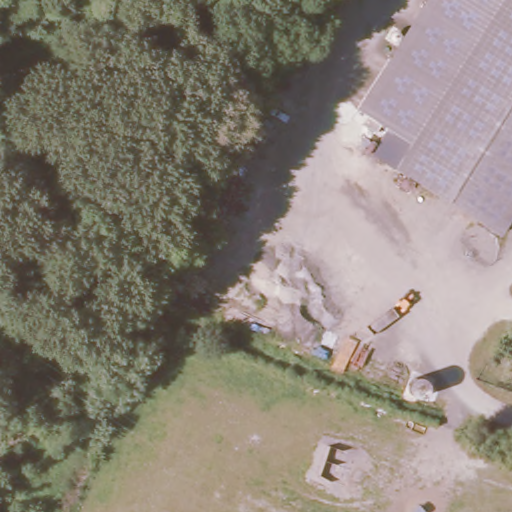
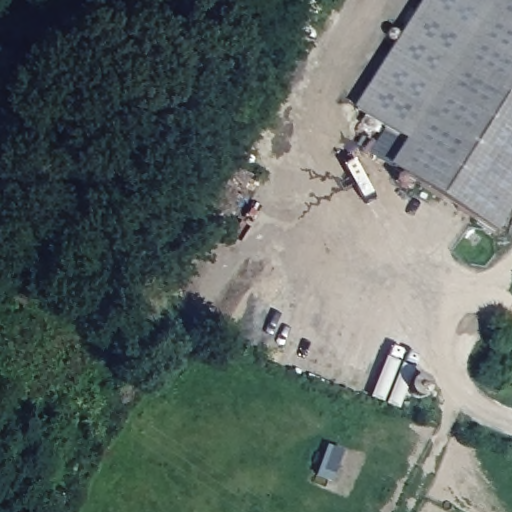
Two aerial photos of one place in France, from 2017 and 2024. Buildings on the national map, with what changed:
unchanged [(500,235),(394,170),(369,154),(385,125),(357,108),(425,0),(512,0),(512,217),(500,235)]

